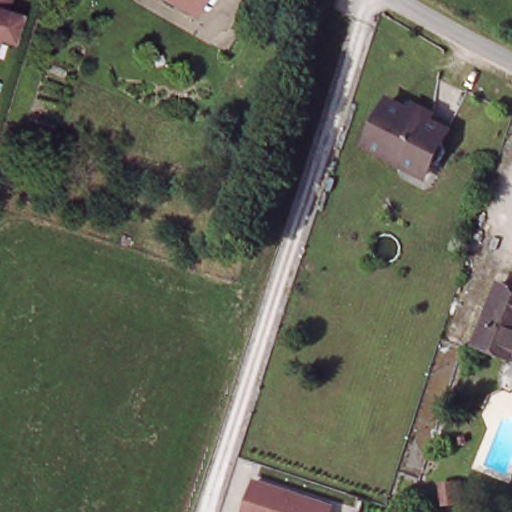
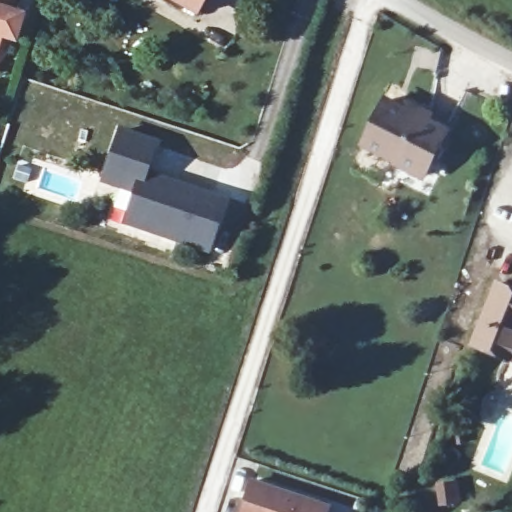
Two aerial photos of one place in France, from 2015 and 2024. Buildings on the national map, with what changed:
unchanged [(5,15),(19,19),(12,43),(0,40),(0,0),(9,0),(5,15)]
unchanged [(195,17),(163,0),(205,0),(195,17)]
unchanged [(440,136),(441,140),(443,143),(447,144),(440,163),(433,159),(424,176),(365,152),(385,101),(391,104),(397,94),(432,111),(428,120),(445,128),(440,136)]
new [(153,144),(147,169),(225,193),(208,252),(116,223),(125,191),(97,181),(112,132),(153,144)]
unchanged [(512,351),(510,356),(472,341),(494,281),(512,288),(512,351)]
unchanged [(243,512),(252,479),(335,504),(333,512),(243,512)]

